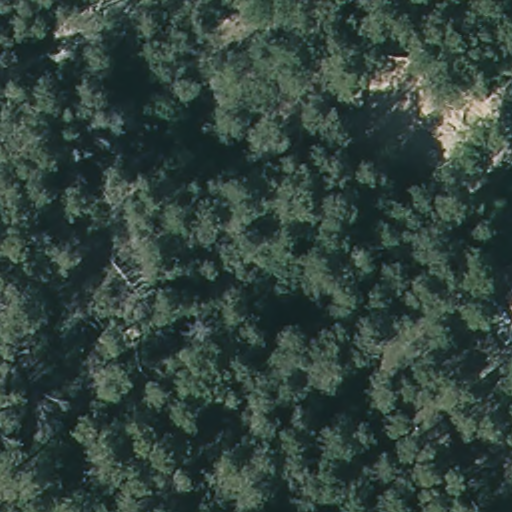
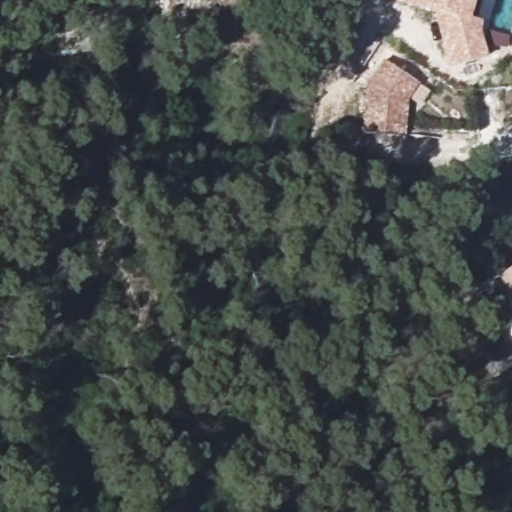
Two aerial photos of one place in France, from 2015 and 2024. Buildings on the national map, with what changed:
new [(483,22),(480,31),(488,58),(448,70),(433,12),(389,0),(476,0),(471,20),(483,22)]
new [(366,81),(384,57),(417,81),(405,97),(401,133),(360,128),(366,81)]
unchanged [(498,276),(512,268),(512,300),(498,276)]

